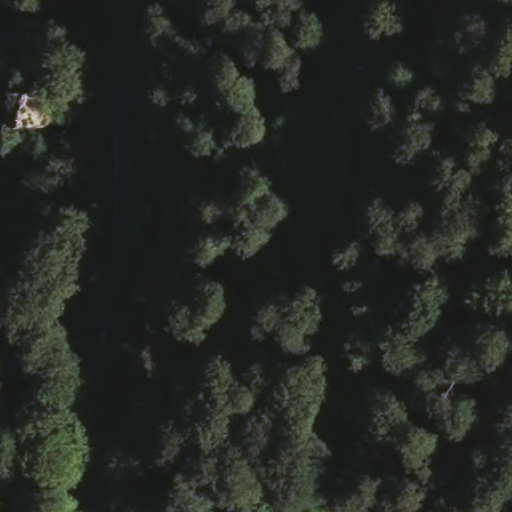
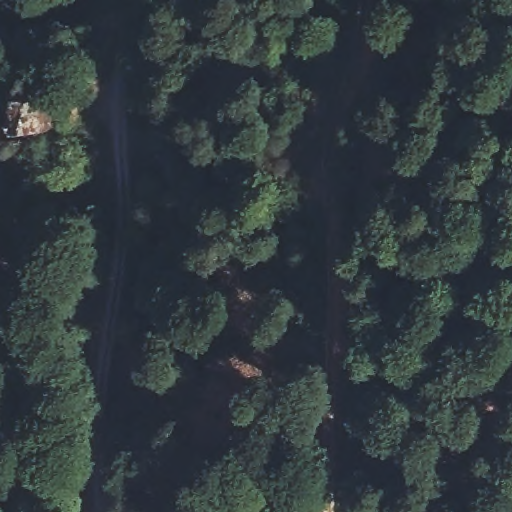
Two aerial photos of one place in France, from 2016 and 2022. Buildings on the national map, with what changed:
unchanged [(32,83),(36,119),(9,121),(7,104),(6,86),(32,83)]

